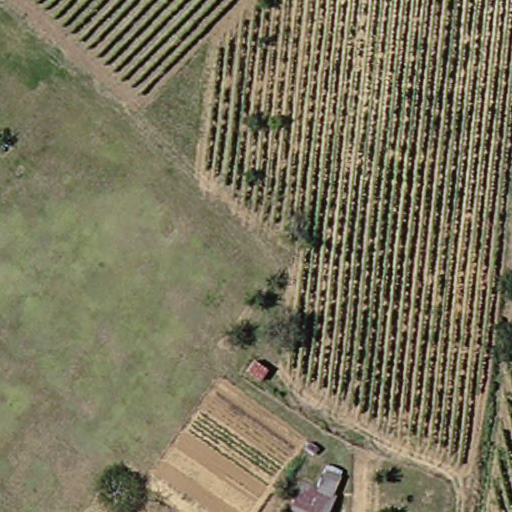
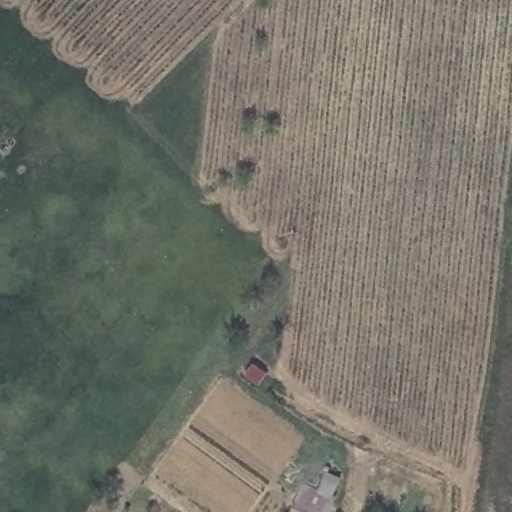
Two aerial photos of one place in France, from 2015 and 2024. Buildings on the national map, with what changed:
unchanged [(340,503),(336,512),(301,512),(315,485),(340,503)]

